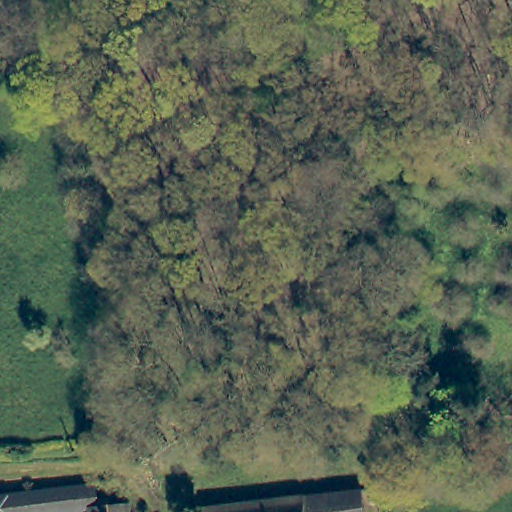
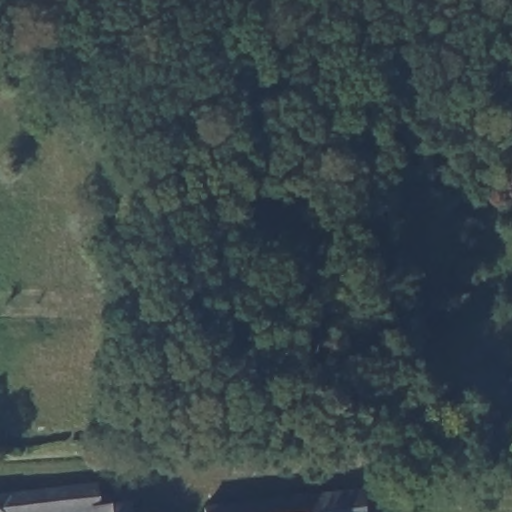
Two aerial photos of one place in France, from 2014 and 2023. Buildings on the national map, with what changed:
unchanged [(98,495),(115,494),(115,501),(138,500),(138,512),(0,512),(0,490),(98,483),(98,495)]
unchanged [(377,512),(198,512),(375,491),(377,512)]

